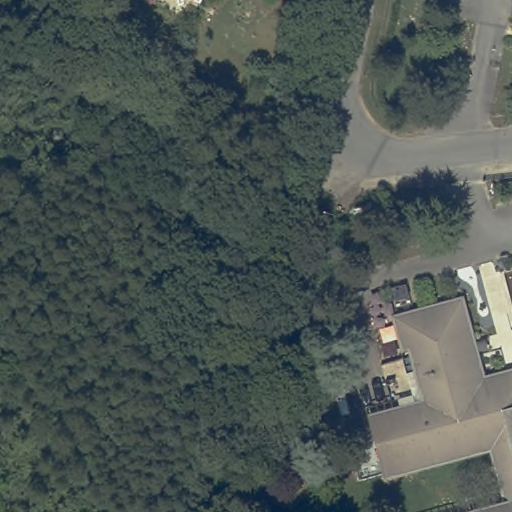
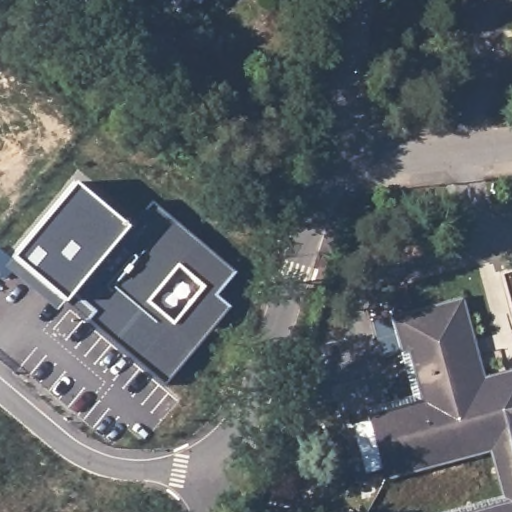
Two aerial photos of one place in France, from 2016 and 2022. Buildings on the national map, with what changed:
unchanged [(207,0),(202,8),(188,0),(207,0)]
new [(71,183),(124,226),(129,229),(149,202),(231,270),(212,295),(226,306),(164,383),(62,299),(53,309),(4,268),(12,259),(10,257),(71,183)]
unchanged [(503,501),(490,453),(387,479),(368,415),(419,401),(398,320),(457,304),(480,383),(512,375),(512,512),(466,512),(503,501)]

